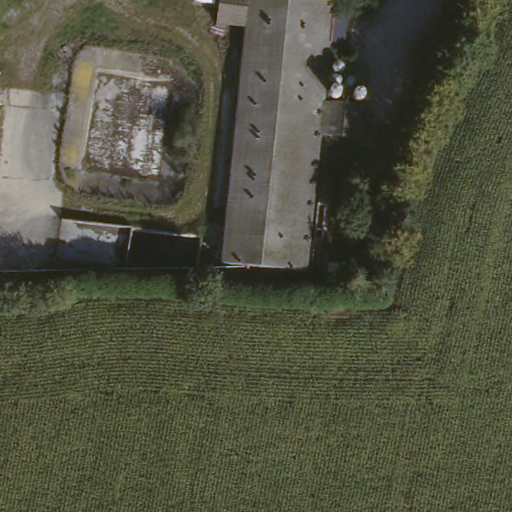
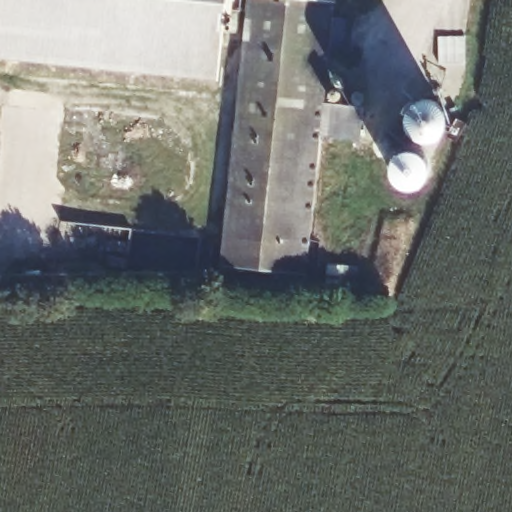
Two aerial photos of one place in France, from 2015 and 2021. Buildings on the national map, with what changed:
new [(0,0),(227,0),(219,79),(219,80),(0,56),(0,0)]
demolished [(217,0),(244,0),(241,30),(215,29),(217,0)]
unchanged [(249,0),(333,0),(325,102),(365,105),(362,139),(322,136),(310,275),(227,268),(249,0)]
new [(425,97),(431,98),(437,100),(442,105),(445,109),(446,114),(446,119),(446,120),(445,125),(444,129),(440,134),(435,137),(430,139),(422,139),(416,136),(411,134),(407,129),(405,125),(405,120),(405,114),(407,108),(409,105),(413,101),(417,99),(425,97)]
new [(390,161),(391,156),(395,152),(400,148),(405,146),(415,147),(420,150),(425,154),(428,159),(428,165),(428,171),(426,175),(422,180),(417,183),(410,185),(405,184),(400,181),(396,179),(392,175),(390,170),(390,161)]
demolished [(356,257),(368,258),(366,280),(355,278),(356,257)]
unchanged [(340,266),(352,267),(350,288),(340,287),(340,266)]

